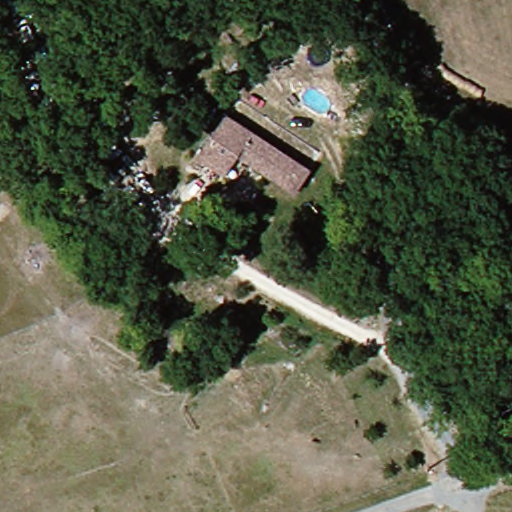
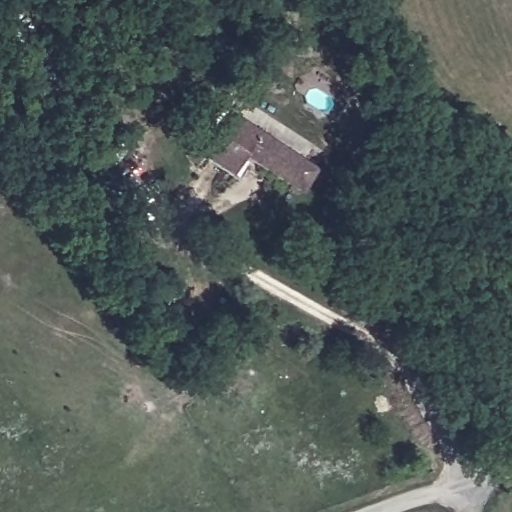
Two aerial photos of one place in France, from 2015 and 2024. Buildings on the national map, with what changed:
unchanged [(321,172),(307,195),(243,154),(233,172),(208,156),(238,114),(278,140),(321,172)]

